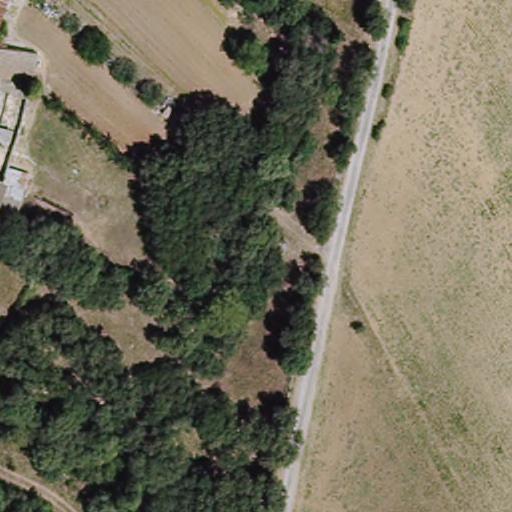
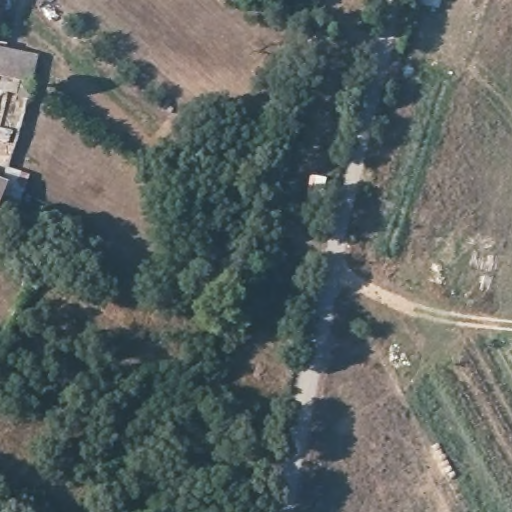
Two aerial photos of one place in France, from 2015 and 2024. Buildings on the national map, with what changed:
unchanged [(0,27),(0,0),(12,0),(9,5),(0,27)]
unchanged [(31,89),(0,82),(0,51),(37,59),(31,89)]
unchanged [(0,208),(0,180),(10,184),(0,208)]

